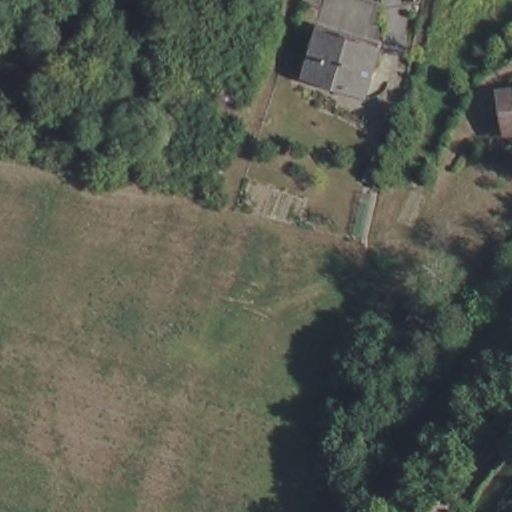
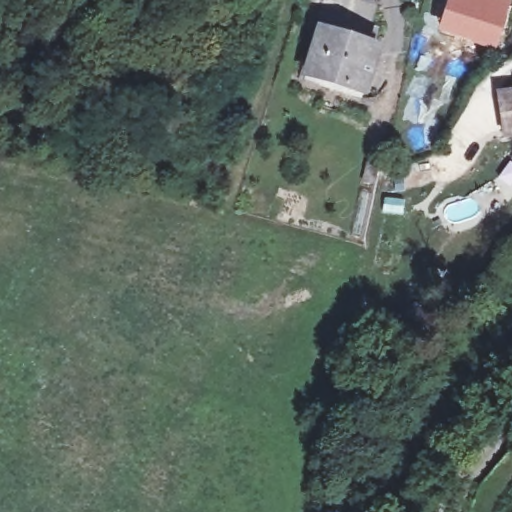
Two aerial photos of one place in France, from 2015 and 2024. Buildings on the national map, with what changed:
unchanged [(314,38),(325,0),(328,0),(376,14),(369,36),(379,39),(374,57),(317,39),(314,38)]
new [(445,0),(511,0),(496,51),(437,32),(445,0)]
unchanged [(361,102),(303,85),(317,39),(374,57),(361,102)]
unchanged [(503,133),(503,91),(512,90),(512,132),(503,133)]

